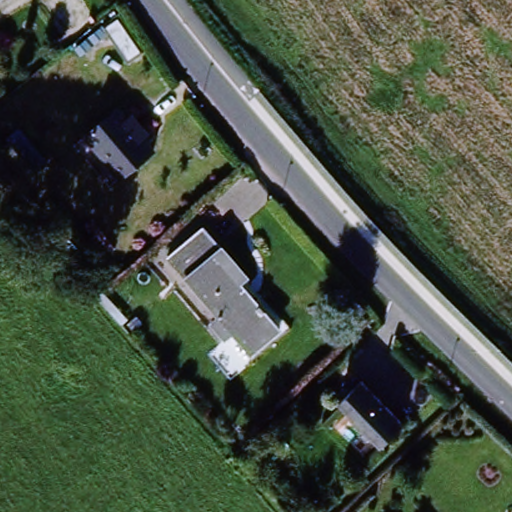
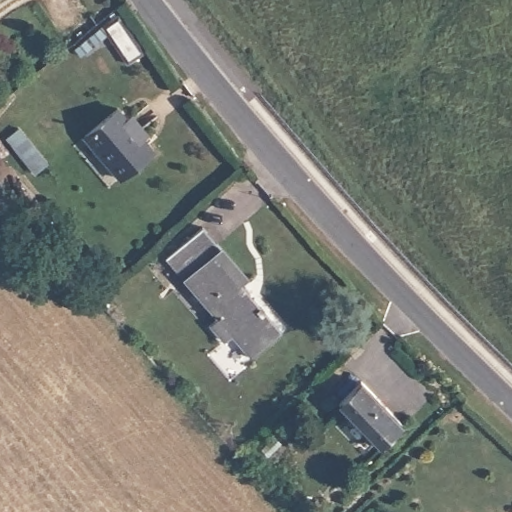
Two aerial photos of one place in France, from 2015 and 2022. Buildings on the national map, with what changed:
unchanged [(116,110),(125,120),(131,116),(149,139),(145,146),(151,156),(116,183),(83,137),(116,110)]
unchanged [(165,260),(201,228),(221,252),(188,284),(165,260)]
unchanged [(246,280),(237,288),(277,332),(249,356),(233,339),(228,344),(214,327),(220,322),(188,284),(221,252),(246,280)]
unchanged [(337,397),(359,376),(403,420),(381,442),(337,397)]

